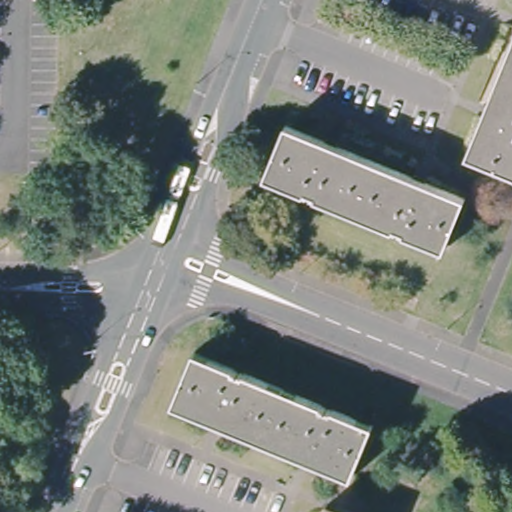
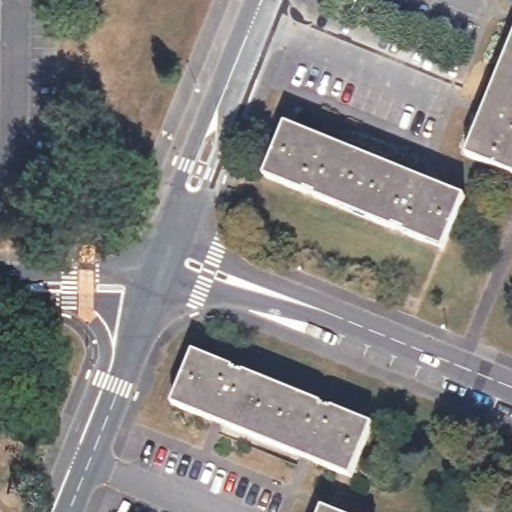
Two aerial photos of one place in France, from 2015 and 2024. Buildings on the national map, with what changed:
unchanged [(512,174),(467,155),(512,45),(512,174)]
unchanged [(462,197),(444,243),(265,172),(283,126),(462,197)]
unchanged [(348,477),(171,405),(191,356),(368,427),(348,477)]
unchanged [(327,512),(322,512),(323,510),(327,512)]

